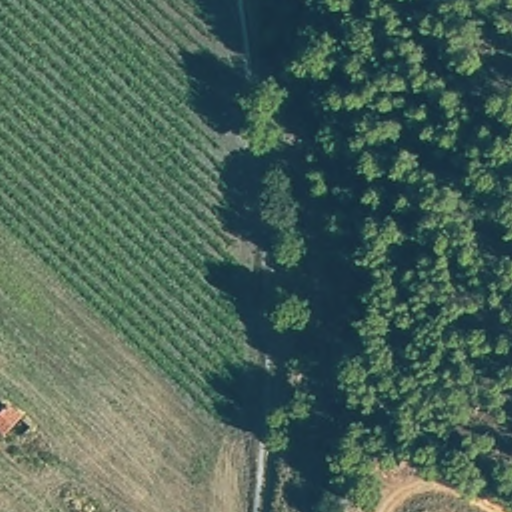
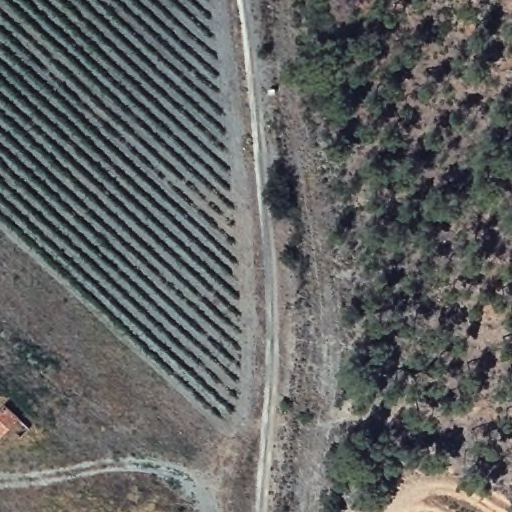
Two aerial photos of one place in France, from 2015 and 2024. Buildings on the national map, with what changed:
unchanged [(0,426),(0,406),(7,399),(22,412),(5,431),(0,426)]

